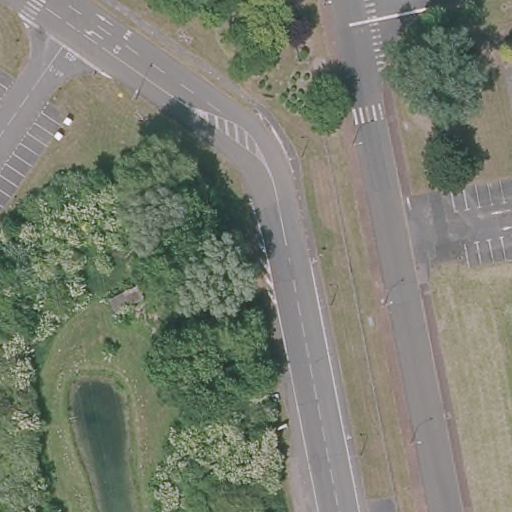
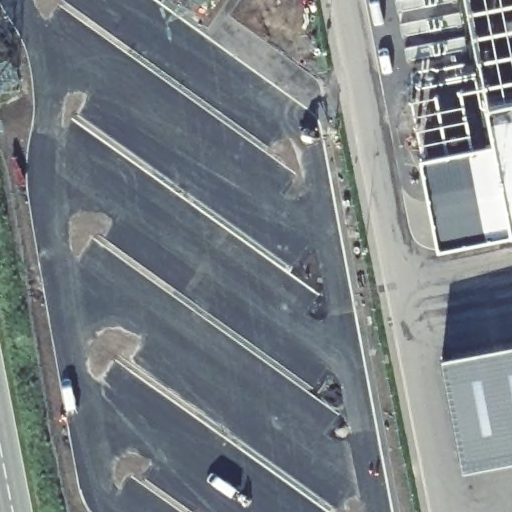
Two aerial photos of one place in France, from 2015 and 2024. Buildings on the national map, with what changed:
new [(409,100),(485,86),(467,0),(512,0),(512,235),(442,249),(409,100)]
new [(443,359),(512,344),(512,463),(466,472),(443,359)]

